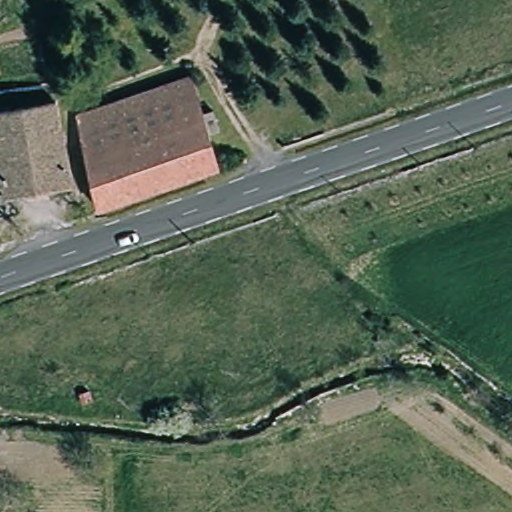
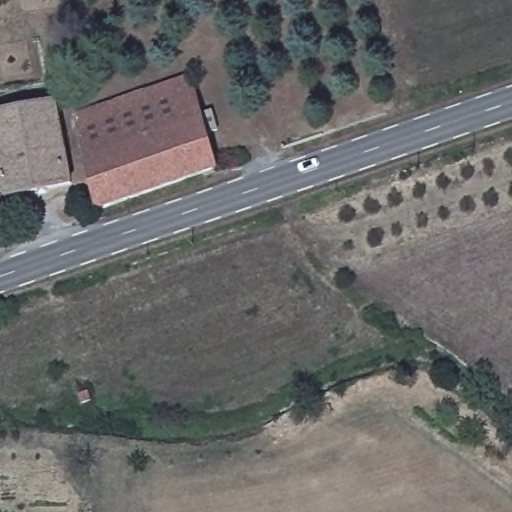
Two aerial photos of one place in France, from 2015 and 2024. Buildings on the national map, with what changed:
unchanged [(100,211),(69,116),(131,95),(184,77),(197,118),(221,110),(228,132),(205,140),(217,173),(100,211)]
unchanged [(5,197),(0,176),(0,108),(49,97),(55,120),(70,184),(5,197)]

